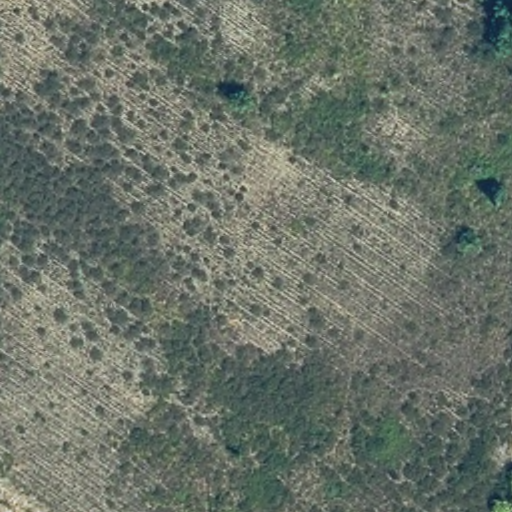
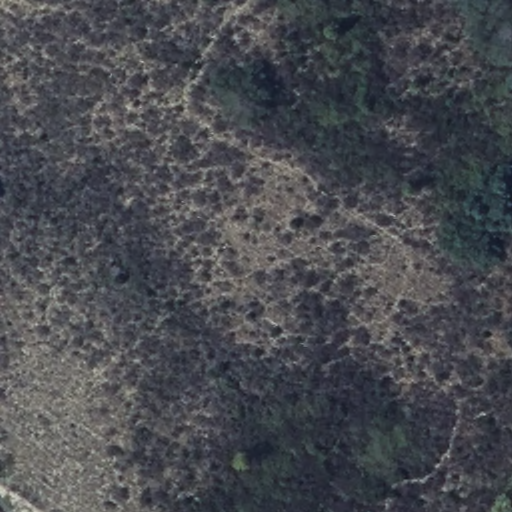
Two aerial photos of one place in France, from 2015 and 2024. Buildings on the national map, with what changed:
[]

